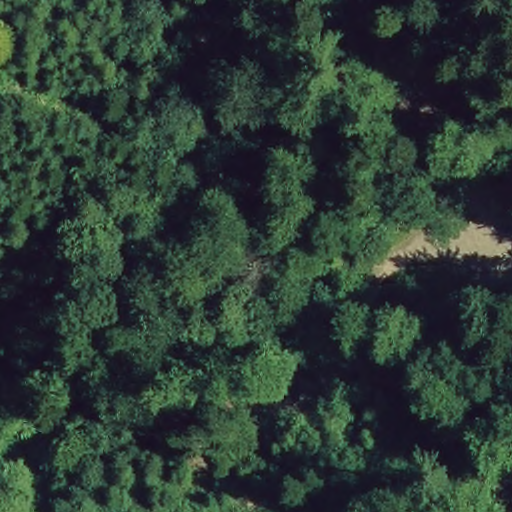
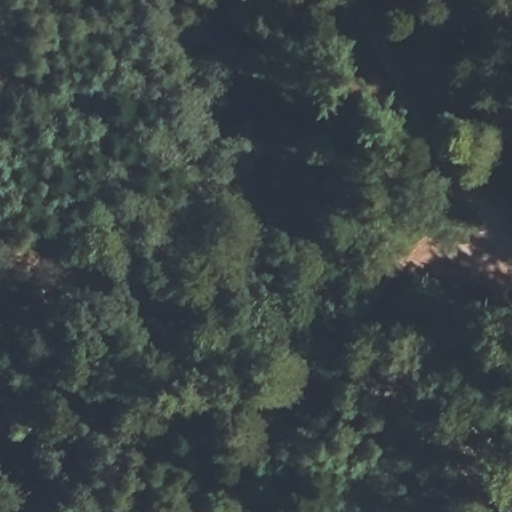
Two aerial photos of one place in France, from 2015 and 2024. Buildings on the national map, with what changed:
unchanged [(343,92),(324,71),(342,55),(361,76),(343,92)]

